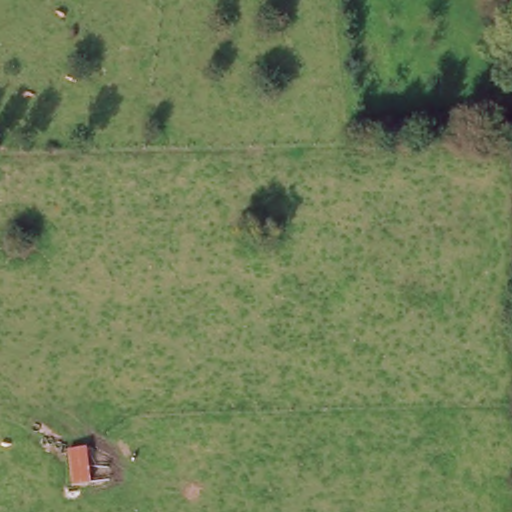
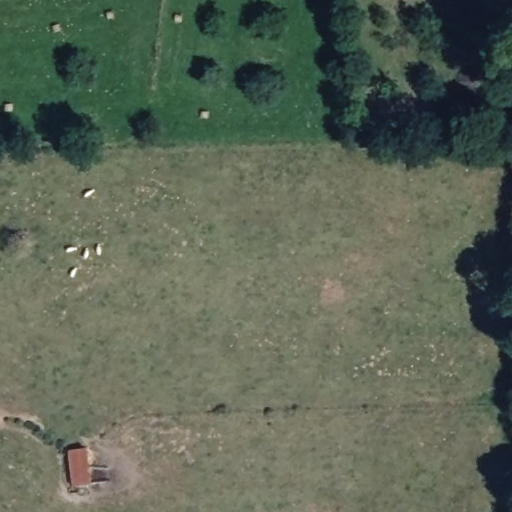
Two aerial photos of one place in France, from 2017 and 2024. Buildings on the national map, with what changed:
unchanged [(71,485),(65,451),(82,445),(89,480),(71,485)]

